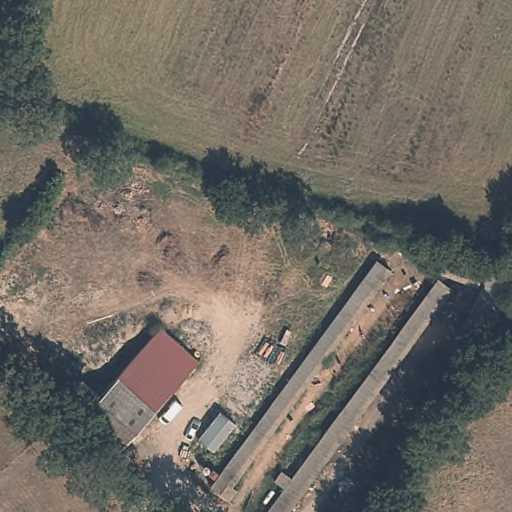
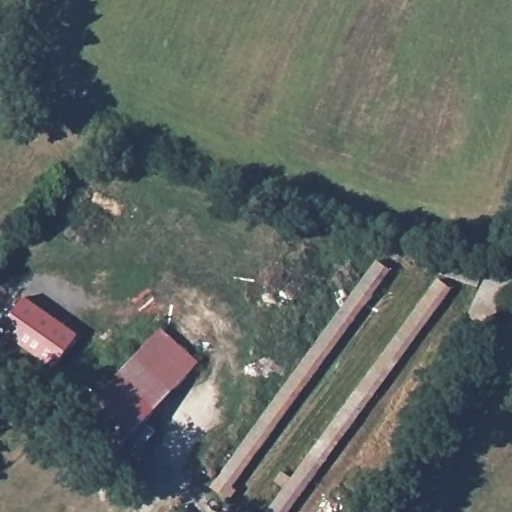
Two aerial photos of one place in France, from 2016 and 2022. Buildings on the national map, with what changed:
unchanged [(388,263),(230,477),(237,483),(229,493),(212,481),(378,255),(388,263)]
unchanged [(451,264),(460,271),(287,507),(295,512),(269,512),(451,264)]
unchanged [(488,265),(510,273),(487,351),(468,343),(488,265)]
new [(72,336),(50,369),(0,334),(0,327),(20,299),(72,336)]
unchanged [(122,369),(165,324),(203,359),(119,448),(81,413),(122,369)]
unchanged [(165,510),(168,512),(163,512),(165,510)]

